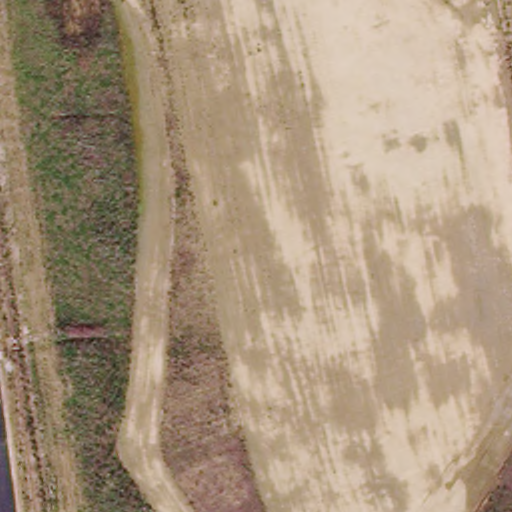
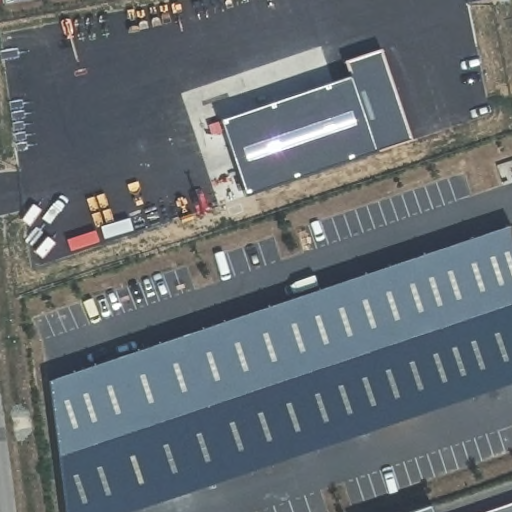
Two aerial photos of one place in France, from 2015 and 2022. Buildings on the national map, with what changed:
new [(512,249),(512,385),(135,512),(63,512),(46,380),(507,226),(512,249)]
unchanged [(512,498),(512,512),(471,512),(512,498)]
unchanged [(428,501),(432,512),(394,512),(428,501)]

